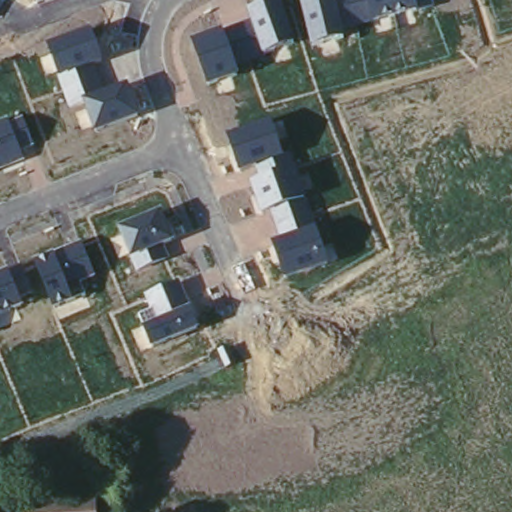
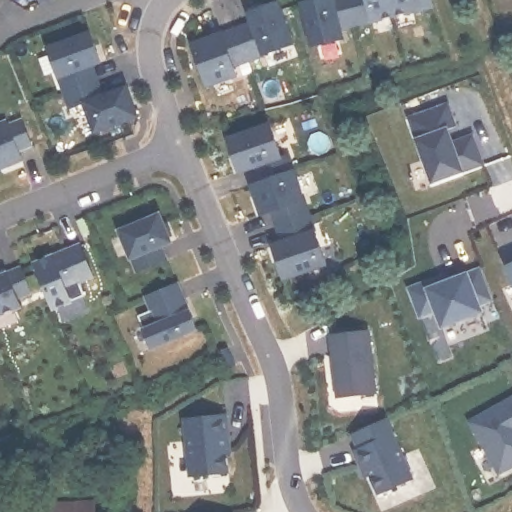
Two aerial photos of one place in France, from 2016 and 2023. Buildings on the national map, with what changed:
unchanged [(264,56),(234,64),(239,76),(207,87),(192,44),(222,34),(251,24),(247,13),(283,0),(297,43),(264,56)]
unchanged [(375,22),(341,32),(343,39),(311,46),(300,4),(314,0),(433,0),(434,6),(417,11),(375,22)]
unchanged [(95,134),(84,104),(70,110),(58,78),(48,46),(90,30),(113,90),(128,85),(140,115),(95,134)]
new [(450,104),(463,137),(473,134),(486,166),(436,182),(410,118),(450,104)]
unchanged [(21,152),(25,163),(0,172),(0,125),(9,121),(10,125),(22,120),(34,148),(21,152)]
unchanged [(286,280),(273,244),(282,240),(271,212),(261,215),(250,184),(261,180),(256,167),(239,174),(226,137),(271,121),(288,169),(292,167),(305,203),(317,232),(329,264),(286,280)]
unchanged [(136,273),(129,259),(118,230),(161,212),(176,243),(158,250),(164,262),(136,273)]
unchanged [(54,309),(35,262),(63,252),(81,244),(94,277),(79,283),(85,297),(54,309)]
new [(512,277),(508,267),(512,265),(512,277)]
unchanged [(23,307),(0,316),(0,274),(9,270),(21,266),(35,299),(23,307)]
new [(441,274),(445,281),(470,272),(486,313),(443,329),(436,313),(419,318),(409,288),(441,274)]
unchanged [(151,349),(142,329),(146,327),(140,318),(152,312),(144,297),(178,283),(191,309),(201,330),(151,349)]
new [(331,331),(370,327),(376,389),(338,393),(331,331)]
new [(512,394),(512,462),(498,469),(470,418),(512,394)]
new [(222,415),(228,473),(192,477),(185,418),(222,415)]
new [(415,477),(381,489),(374,474),(367,477),(351,432),(390,417),(415,477)]
unchanged [(25,506),(91,501),(92,512),(25,512),(25,506)]
new [(232,509),(233,512),(221,512),(232,509)]

